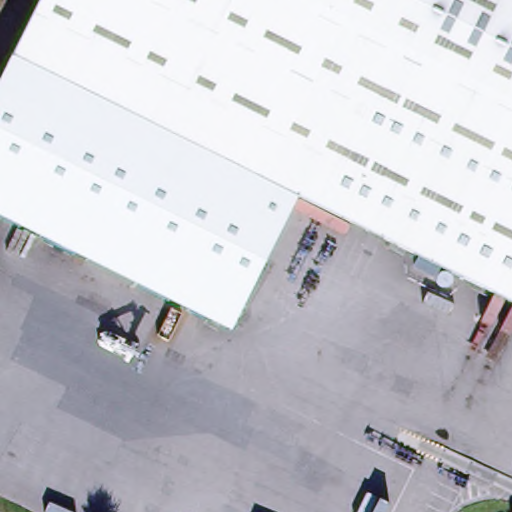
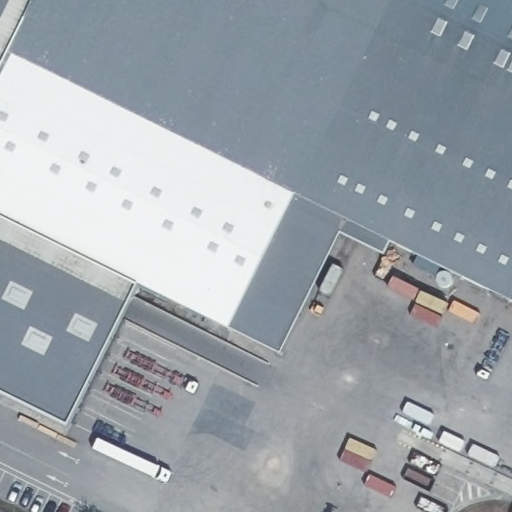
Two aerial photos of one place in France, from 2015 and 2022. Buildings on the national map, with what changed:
new [(0,0),(42,0),(0,83),(0,0)]
unchanged [(338,215),(308,200),(297,195),(231,330),(211,320),(0,218),(0,83),(42,0),(512,0),(512,300),(338,215)]
new [(0,218),(139,285),(69,429),(0,395),(0,218)]

